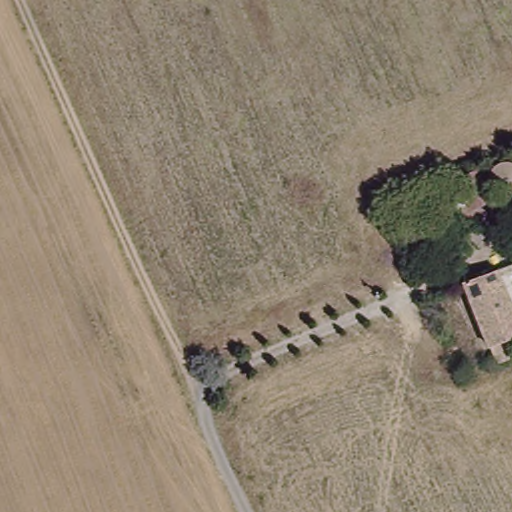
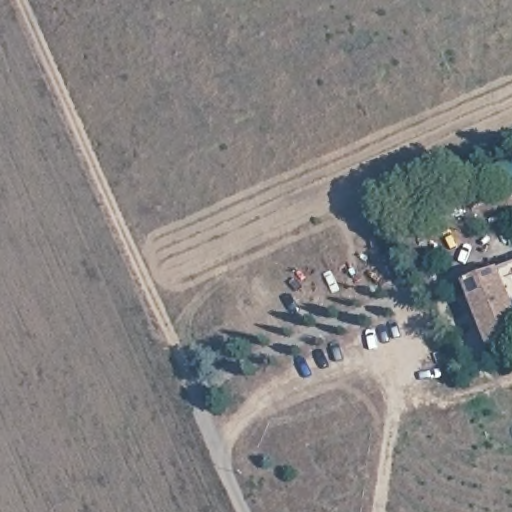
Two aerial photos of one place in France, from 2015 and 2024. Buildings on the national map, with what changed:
unchanged [(494,344),(470,278),(512,262),(512,337),(494,344)]

